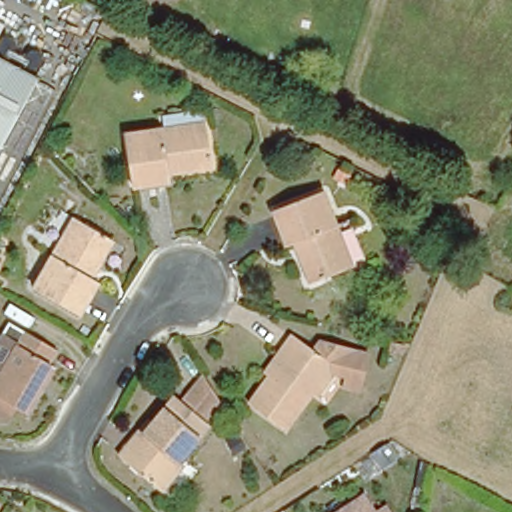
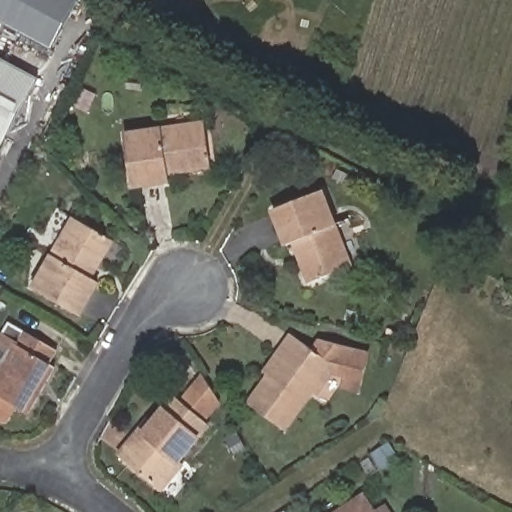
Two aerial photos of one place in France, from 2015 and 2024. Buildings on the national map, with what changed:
new [(0,22),(0,0),(80,0),(54,49),(3,24),(0,22)]
unchanged [(0,30),(0,22),(3,24),(0,30)]
unchanged [(0,150),(0,59),(37,79),(0,150)]
unchanged [(207,167),(164,174),(165,181),(129,185),(122,133),(200,123),(207,167)]
unchanged [(311,281),(295,241),(287,244),(273,210),(322,190),(352,264),(311,281)]
unchanged [(86,277),(94,281),(76,314),(31,289),(69,219),(107,240),(86,277)]
unchanged [(1,334),(8,322),(12,324),(57,351),(50,364),(55,367),(27,412),(15,405),(6,419),(0,419),(0,341),(3,336),(1,334)]
unchanged [(341,391),(343,379),(332,371),(312,399),(308,395),(282,432),(246,406),(266,378),(262,375),(275,357),(288,339),(310,354),(314,348),(322,353),(325,348),(363,358),(357,383),(355,394),(341,391)]
unchanged [(210,429),(179,467),(182,471),(163,495),(120,459),(135,441),(149,424),(155,428),(176,401),(183,407),(205,379),(221,404),(205,425),(210,429)]
unchanged [(370,512),(337,512),(360,497),(370,512)]

